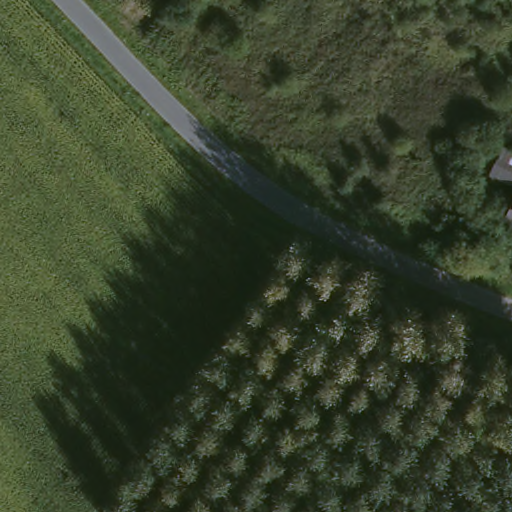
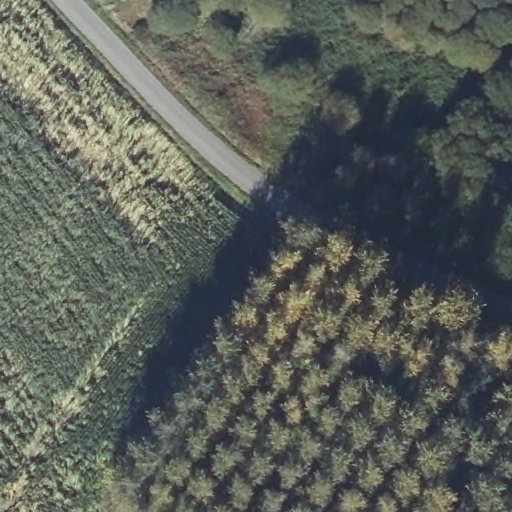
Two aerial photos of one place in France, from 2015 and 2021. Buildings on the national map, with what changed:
unchanged [(502,150),(512,154),(512,187),(490,176),(502,150)]
unchanged [(512,202),(512,223),(504,220),(512,202)]

